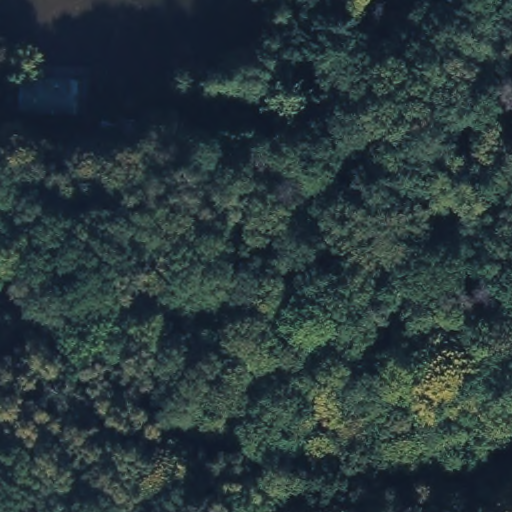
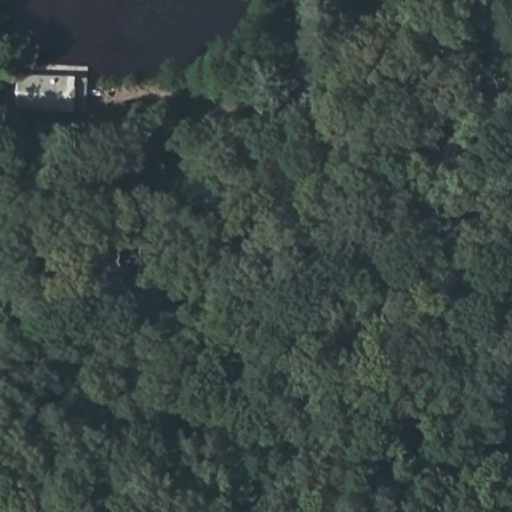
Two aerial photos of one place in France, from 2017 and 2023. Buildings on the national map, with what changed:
unchanged [(90,71),(90,108),(32,107),(32,71),(90,71)]

